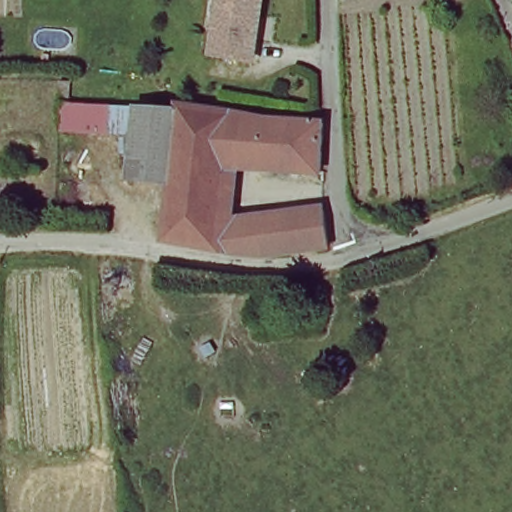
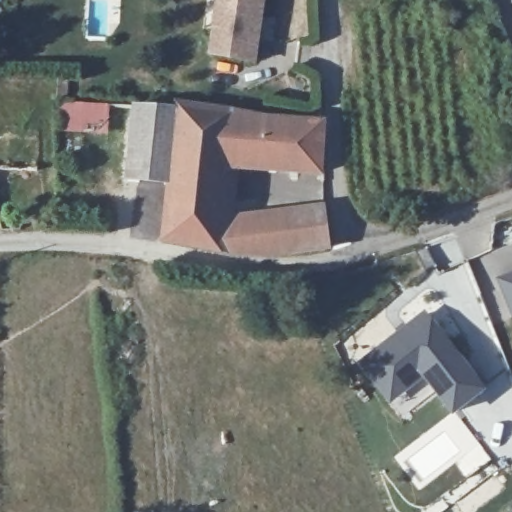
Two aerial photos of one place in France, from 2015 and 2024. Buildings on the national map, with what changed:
unchanged [(256,59),(227,56),(216,55),(223,0),(263,0),(256,59)]
unchanged [(59,100),(128,102),(175,107),(175,99),(329,119),(319,176),(238,167),(237,217),(325,204),(331,249),(229,261),(225,251),(160,240),(165,183),(125,177),(130,134),(58,129),(59,100)]
new [(512,280),(512,292),(507,282),(512,280)]
new [(380,390),(361,366),(398,336),(405,331),(423,316),(482,391),(453,414),(424,377),(410,388),(390,403),(380,390)]

